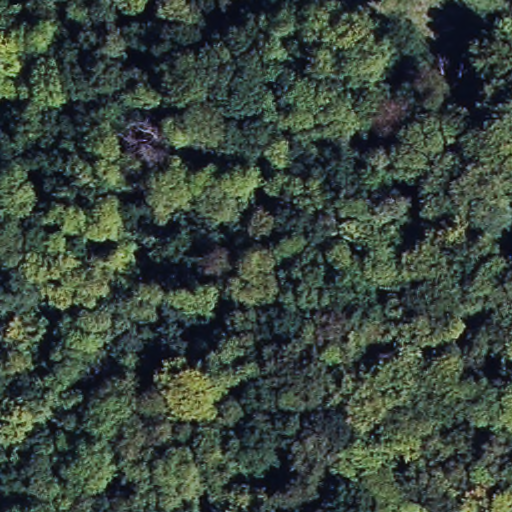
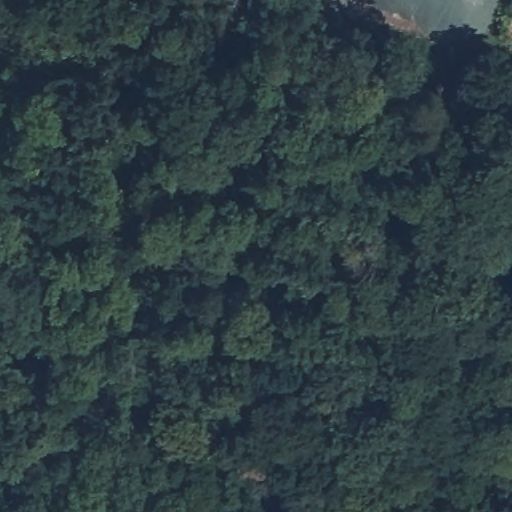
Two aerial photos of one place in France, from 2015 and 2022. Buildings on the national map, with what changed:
unchanged [(505,56),(512,59),(512,75),(500,72),(505,56)]

